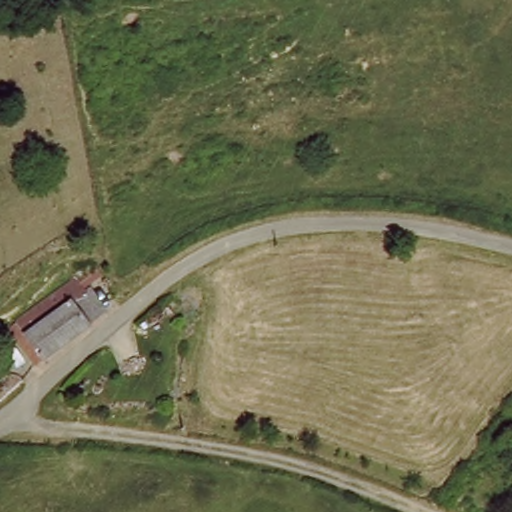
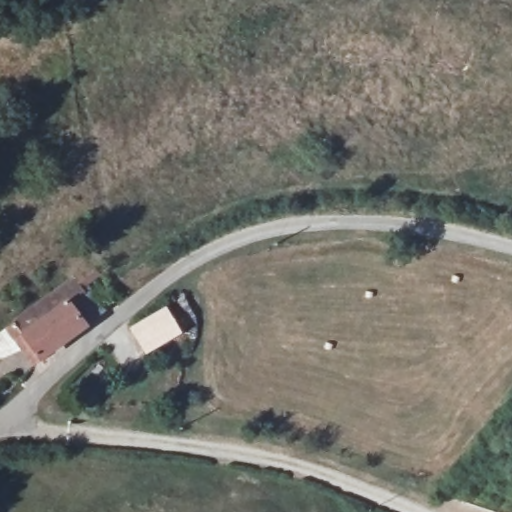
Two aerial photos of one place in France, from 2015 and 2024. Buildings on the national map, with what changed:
unchanged [(28,375),(13,351),(5,338),(67,295),(63,290),(90,270),(103,288),(82,303),(99,325),(98,327),(28,375)]
new [(167,306),(183,334),(146,356),(130,328),(167,306)]

